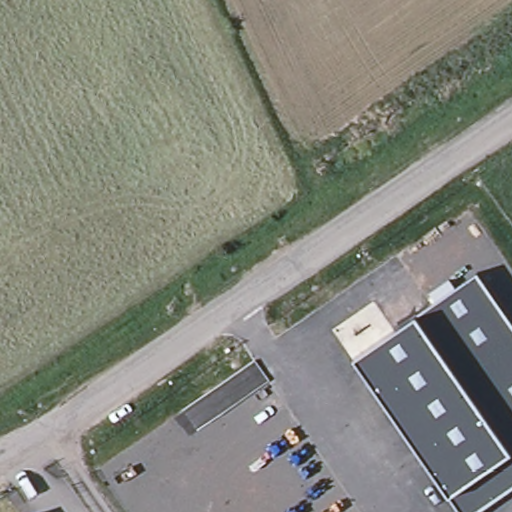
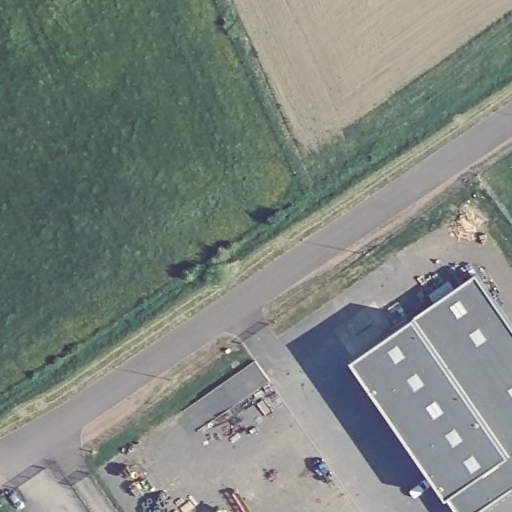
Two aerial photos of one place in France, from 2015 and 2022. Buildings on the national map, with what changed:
unchanged [(512,325),(512,488),(478,512),(458,512),(352,357),(475,272),(512,325)]

